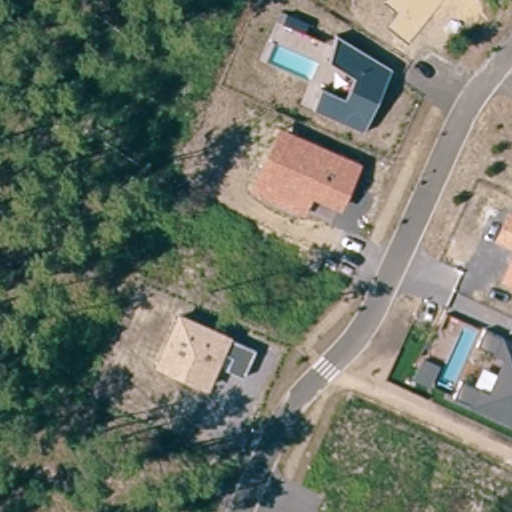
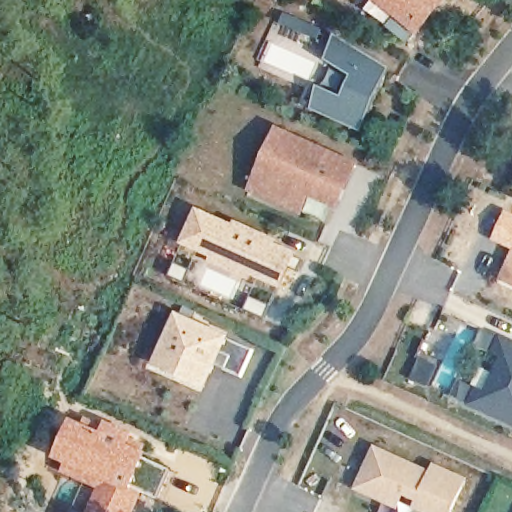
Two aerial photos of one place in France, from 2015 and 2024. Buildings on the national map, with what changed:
new [(450,0),(420,36),(416,34),(406,43),(388,27),(396,18),(375,0),(450,0)]
unchanged [(392,66),(365,135),(311,110),(320,85),(346,96),(356,76),(329,58),(337,31),(392,66)]
unchanged [(361,165),(340,212),(312,200),(305,218),(250,194),(279,127),(361,165)]
unchanged [(512,212),(512,249),(494,242),(507,210),(512,212)]
new [(198,215),(234,231),(237,225),(267,238),(265,245),(305,262),(299,275),(297,274),(290,292),(250,274),(252,270),(225,257),(222,262),(185,245),(198,215)]
unchanged [(500,283),(512,255),(512,288),(500,283)]
unchanged [(176,312),(231,337),(255,348),(244,377),(227,369),(232,356),(224,353),(207,391),(153,366),(176,312)]
unchanged [(488,392),(502,357),(475,346),(484,326),(512,338),(512,426),(452,399),(460,382),(488,392)]
new [(72,418),(81,422),(85,414),(150,444),(131,488),(144,494),(136,512),(85,512),(95,490),(60,474),(64,466),(52,460),(72,418)]
new [(382,503),(356,492),(375,452),(400,463),(406,466),(428,477),(432,469),(463,484),(450,512),(419,512),(415,511),(419,504),(402,496),(396,510),(382,503)]

